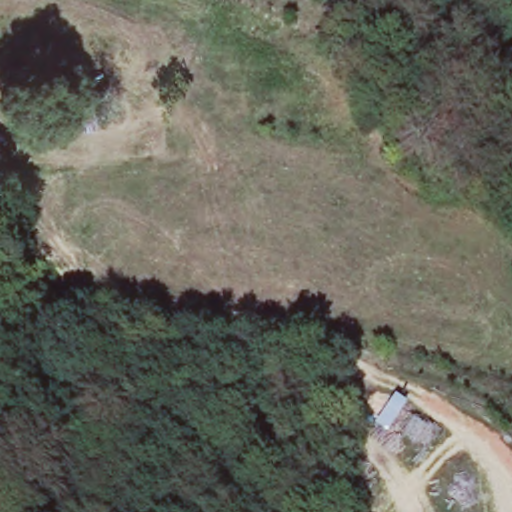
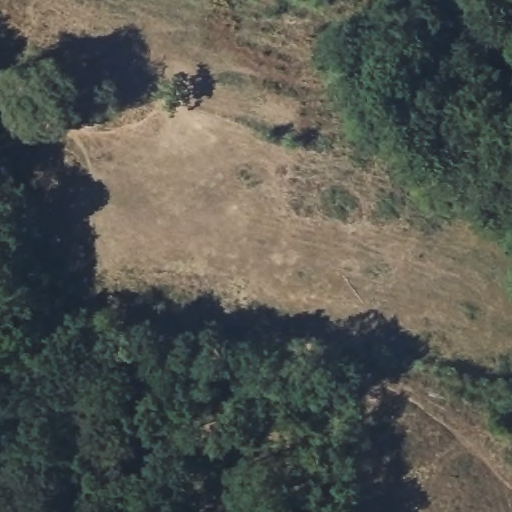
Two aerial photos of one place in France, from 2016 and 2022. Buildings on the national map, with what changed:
unchanged [(53,128),(51,99),(86,98),(85,126),(53,128)]

